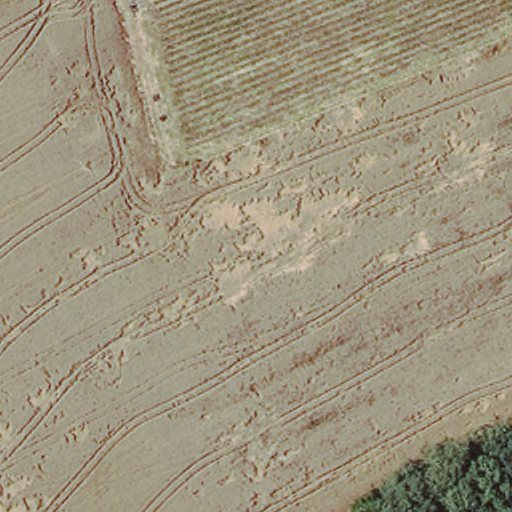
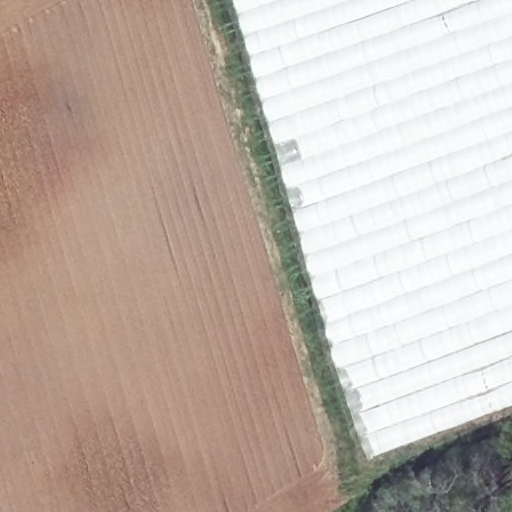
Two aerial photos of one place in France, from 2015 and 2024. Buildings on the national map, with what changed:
new [(512,403),(497,409),(376,453),(360,412),(366,409),(360,392),(362,391),(359,382),(355,384),(338,345),(370,337),(365,327),(349,311),(345,311),(330,314),(322,294),(316,296),(288,198),(287,191),(231,0),(512,0),(512,403)]

